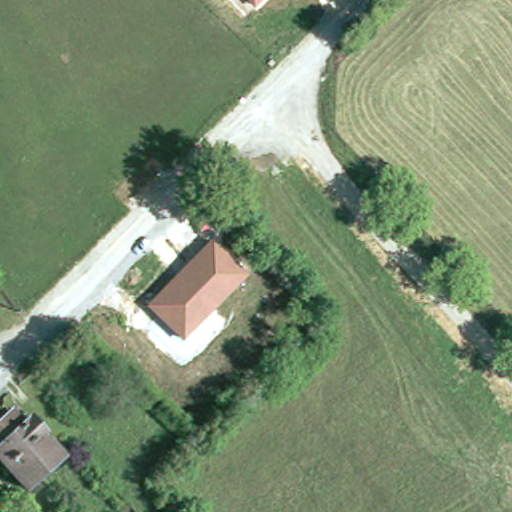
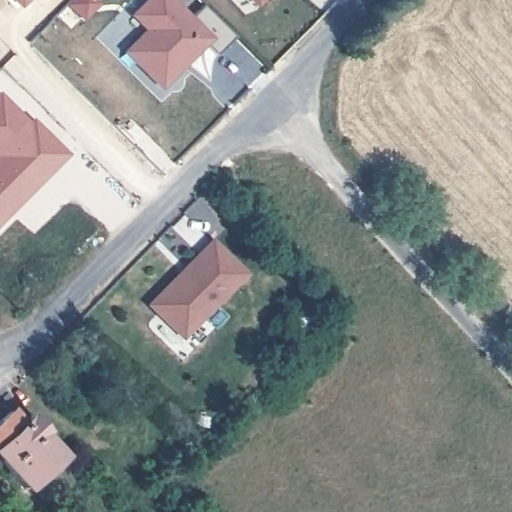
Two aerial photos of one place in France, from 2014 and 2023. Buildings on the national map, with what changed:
new [(13,0),(20,0),(16,4),(13,0)]
new [(144,31),(129,16),(145,0),(169,0),(187,19),(200,6),(231,37),(212,55),(201,45),(196,50),(188,49),(173,64),(177,69),(157,88),(130,61),(121,52),(136,37),(144,31)]
unchanged [(257,9),(249,0),(267,0),(257,9)]
new [(34,131),(37,127),(63,154),(37,180),(40,183),(22,202),(15,195),(3,207),(10,214),(0,224),(0,97),(34,131)]
unchanged [(247,275),(180,342),(146,305),(210,240),(247,275)]
unchanged [(10,413),(21,426),(30,417),(43,432),(40,435),(61,457),(26,490),(0,460),(0,423),(10,413)]

